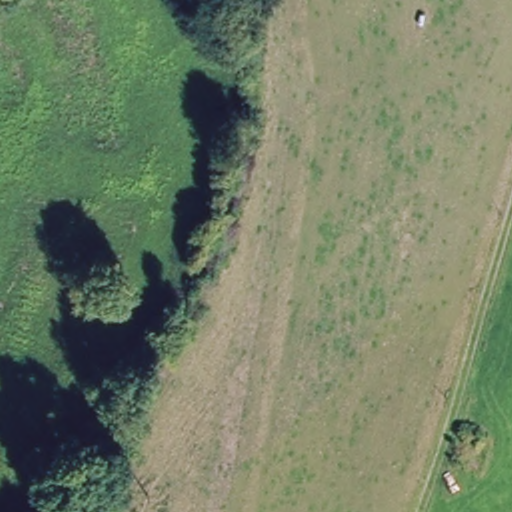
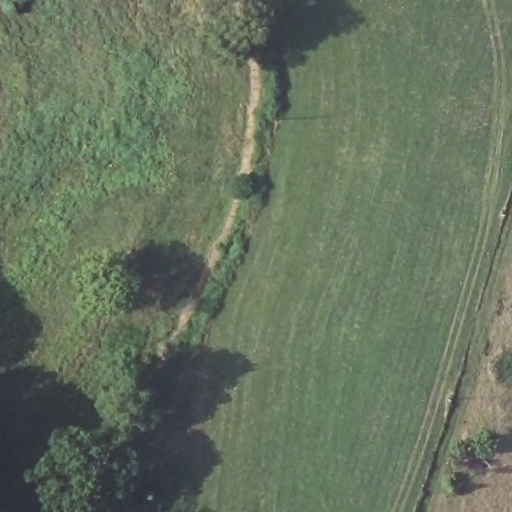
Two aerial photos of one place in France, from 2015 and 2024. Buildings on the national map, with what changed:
unchanged [(482,439),(468,468),(450,462),(461,432),(482,439)]

